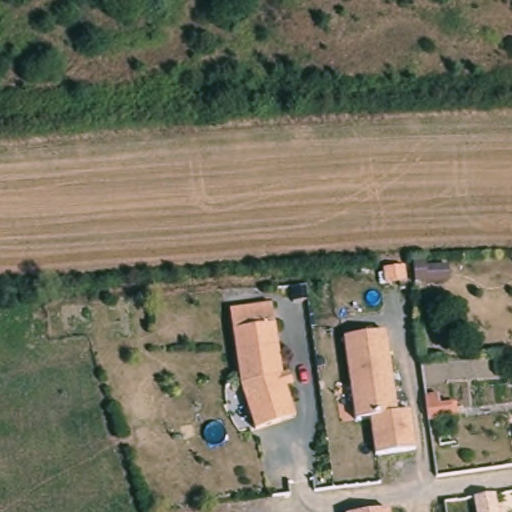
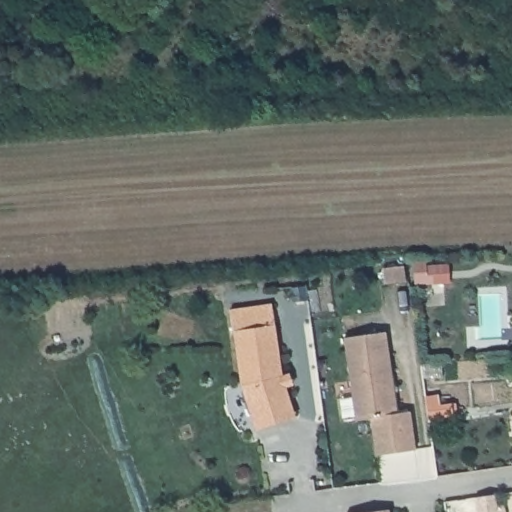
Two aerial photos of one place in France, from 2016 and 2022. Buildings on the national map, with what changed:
unchanged [(444,281),(422,281),(410,281),(411,259),(423,259),(423,265),(444,265),(444,281)]
unchanged [(286,419),(260,427),(247,383),(238,328),(280,322),(288,372),(295,371),(298,382),(291,384),(296,401),(300,415),(286,419)]
unchanged [(368,419),(354,421),(343,340),(385,335),(396,412),(409,411),(414,450),(376,456),(368,419)]
unchanged [(428,423),(427,413),(425,401),(438,399),(439,410),(451,408),(453,420),(428,423)]

